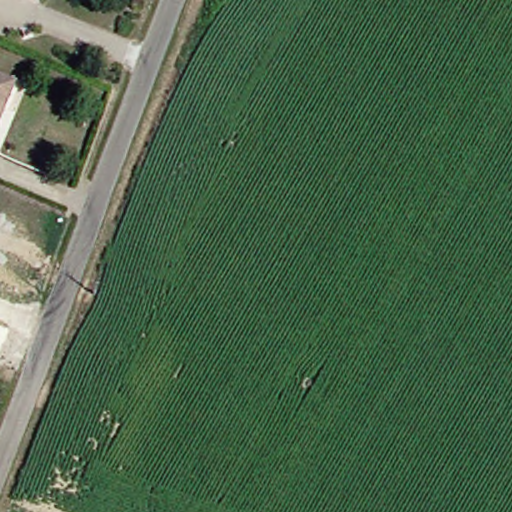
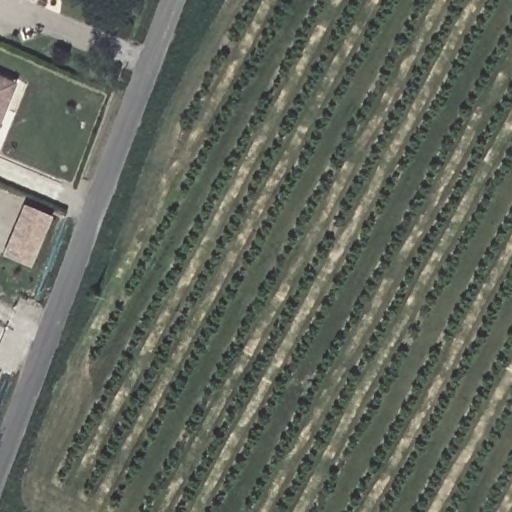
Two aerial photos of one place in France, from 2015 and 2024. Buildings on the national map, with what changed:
unchanged [(0,95),(0,79),(6,81),(0,95)]
new [(50,216),(27,267),(0,255),(22,204),(50,216)]

